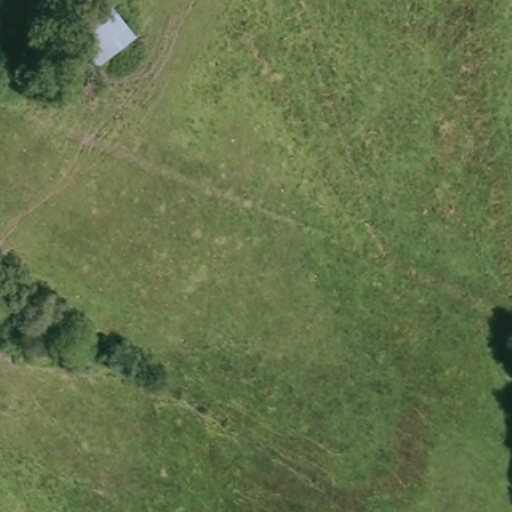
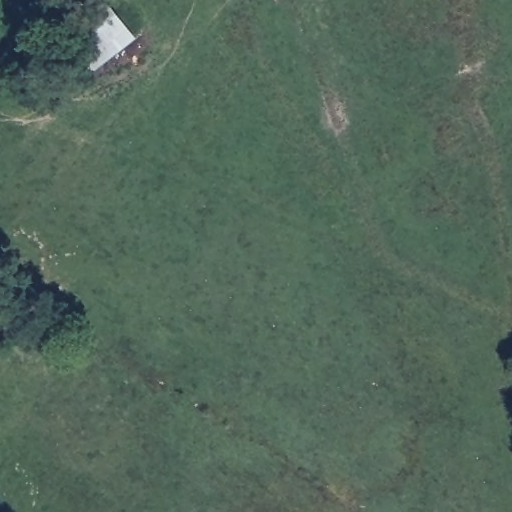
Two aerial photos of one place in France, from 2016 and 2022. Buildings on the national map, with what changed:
unchanged [(95,76),(72,52),(117,14),(141,39),(95,76)]

